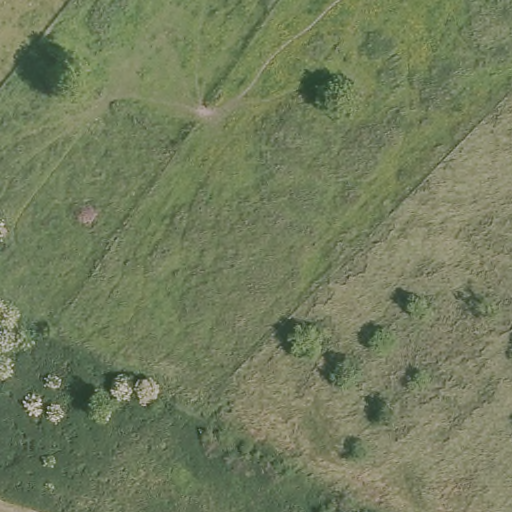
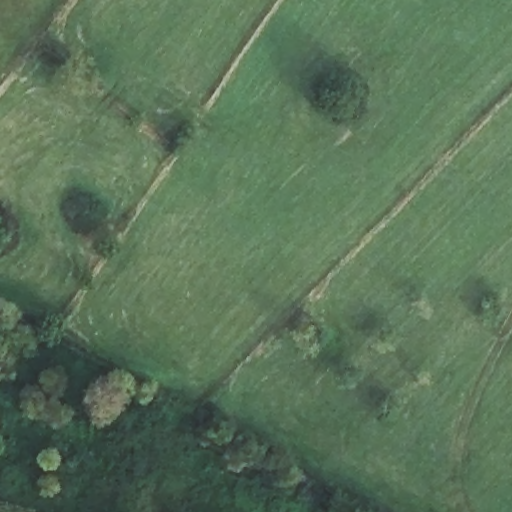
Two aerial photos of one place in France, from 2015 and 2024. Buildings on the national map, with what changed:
[]

